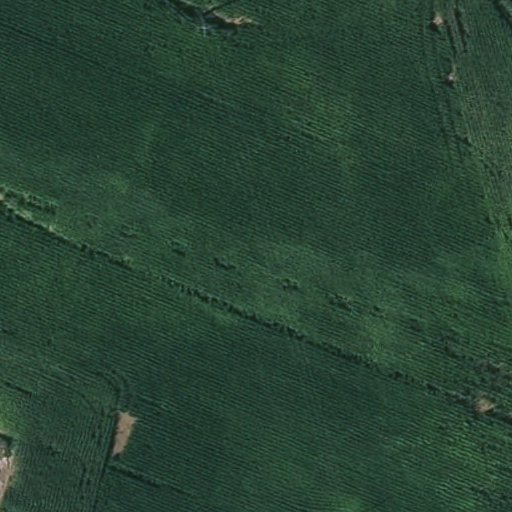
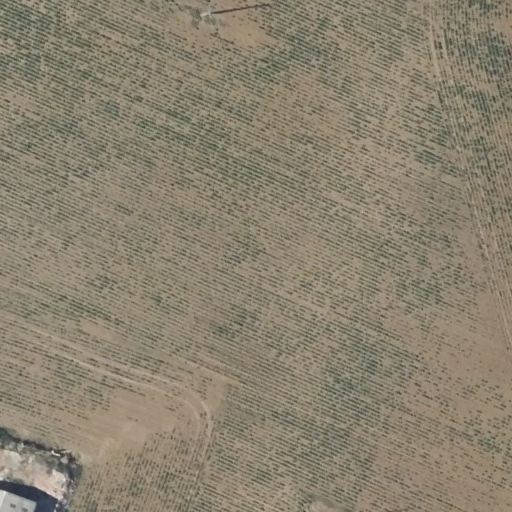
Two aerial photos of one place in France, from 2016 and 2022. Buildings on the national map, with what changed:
new [(35,503),(32,512),(0,512),(0,491),(35,503)]

